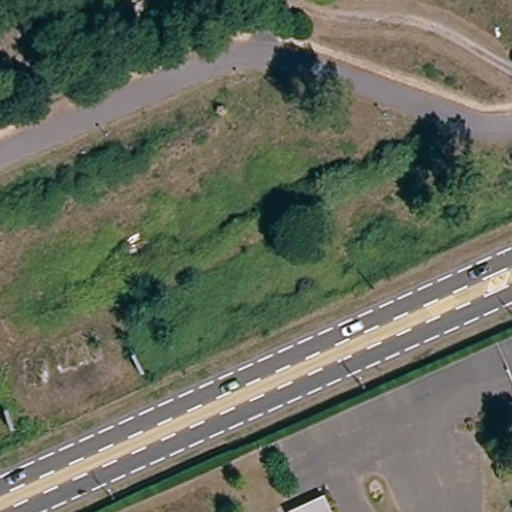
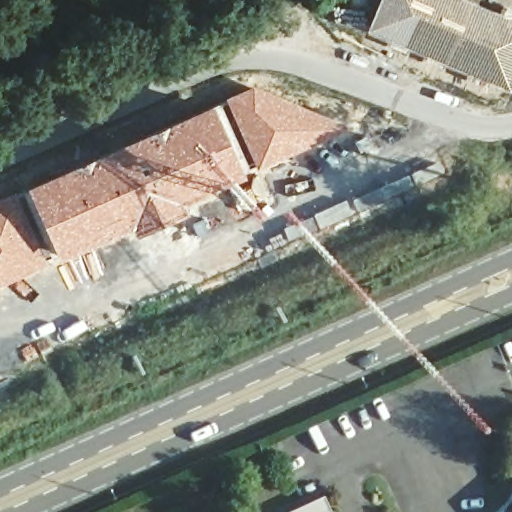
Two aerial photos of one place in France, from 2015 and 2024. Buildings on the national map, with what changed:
new [(366,30),(379,0),(472,0),(512,17),(512,84),(509,91),(366,30)]
new [(253,84),(351,127),(258,170),(255,167),(245,172),(246,175),(182,202),(186,211),(136,234),(132,227),(60,257),(46,264),(0,284),(0,198),(27,185),(212,102),(226,100),(225,96),(253,84)]
demolished [(70,367),(57,345),(97,329),(106,351),(70,367)]
unchanged [(321,498),(327,512),(292,512),(321,498)]

